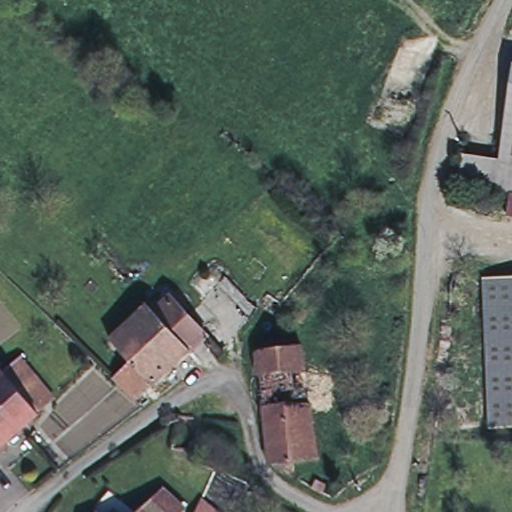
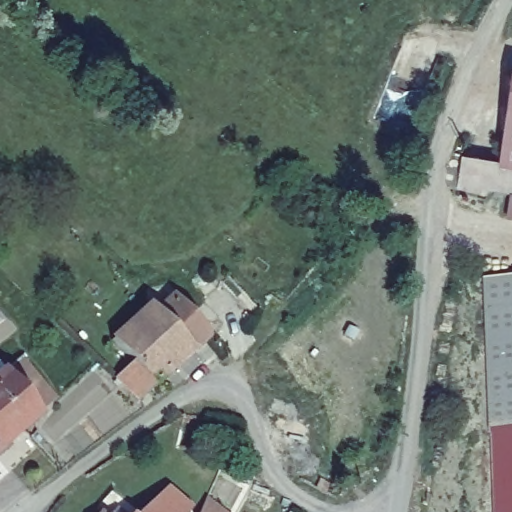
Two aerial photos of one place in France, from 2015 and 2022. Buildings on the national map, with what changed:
unchanged [(485,195),(455,190),(461,156),(499,161),(512,77),(512,191),(486,186),(485,195)]
unchanged [(485,277),(512,277),(512,427),(490,427),(485,277)]
unchanged [(176,293),(212,332),(197,345),(161,307),(176,293)]
unchanged [(118,375),(135,357),(115,336),(154,300),(161,307),(197,345),(157,381),(141,396),(118,375)]
demolished [(303,341),(314,411),(267,413),(265,397),(259,346),(303,341)]
unchanged [(8,361),(13,367),(14,368),(28,356),(60,395),(47,407),(50,410),(32,425),(24,431),(10,442),(0,451),(0,369),(8,361)]
demolished [(286,466),(285,457),(272,458),(267,413),(314,411),(320,455),(296,457),(296,466),(286,466)]
new [(493,512),(490,427),(512,427),(512,512),(493,512)]
unchanged [(327,485),(322,494),(314,490),(319,480),(327,485)]
unchanged [(188,507),(183,512),(136,512),(164,485),(188,507)]
unchanged [(222,512),(196,512),(203,497),(222,512)]
unchanged [(100,512),(98,512),(99,511),(100,512)]

